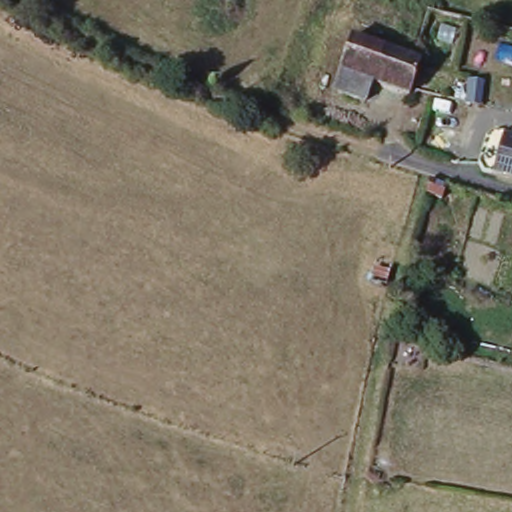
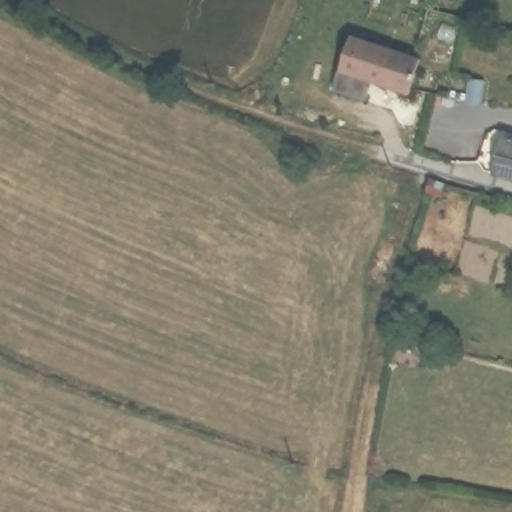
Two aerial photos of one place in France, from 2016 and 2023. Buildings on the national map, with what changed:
unchanged [(431,23),(433,15),(439,17),(437,25),(431,23)]
unchanged [(423,56),(412,93),(374,82),(369,100),(338,91),(354,37),(423,56)]
unchanged [(480,113),(464,109),(469,87),(485,90),(480,113)]
unchanged [(512,138),(512,173),(502,171),(510,137),(512,138)]
unchanged [(442,195),(438,207),(423,201),(427,189),(442,195)]

